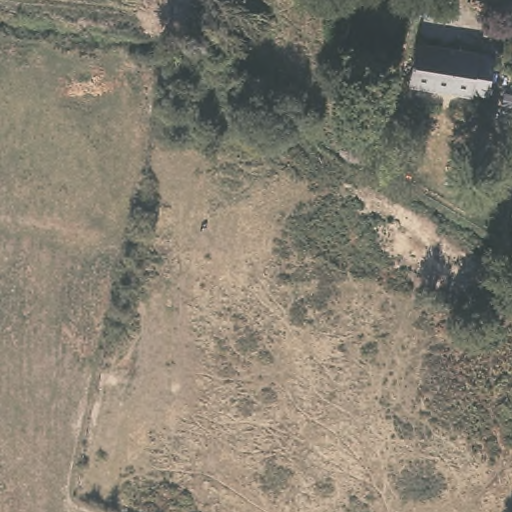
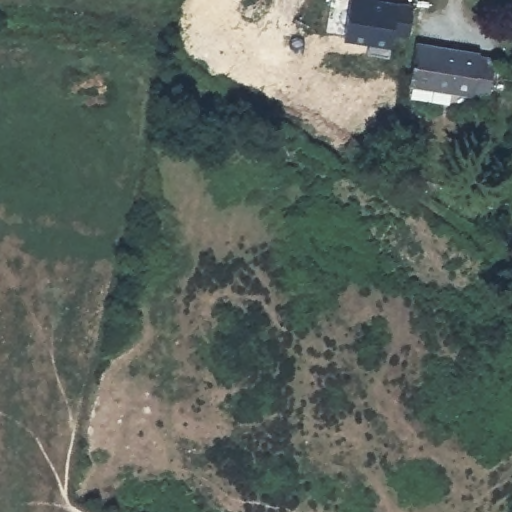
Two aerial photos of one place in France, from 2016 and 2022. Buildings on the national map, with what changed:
new [(408,35),(392,33),(389,54),(368,51),(369,42),(343,39),(349,0),(398,0),(413,2),(408,35)]
unchanged [(413,39),(476,49),(475,54),(492,56),(492,60),(487,94),(470,90),(468,94),(406,83),(412,50),(413,39)]

